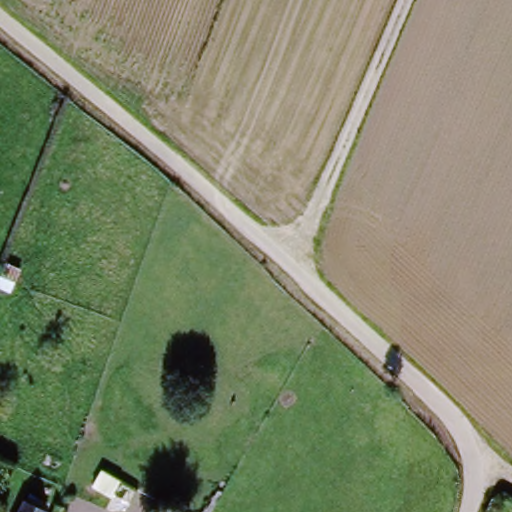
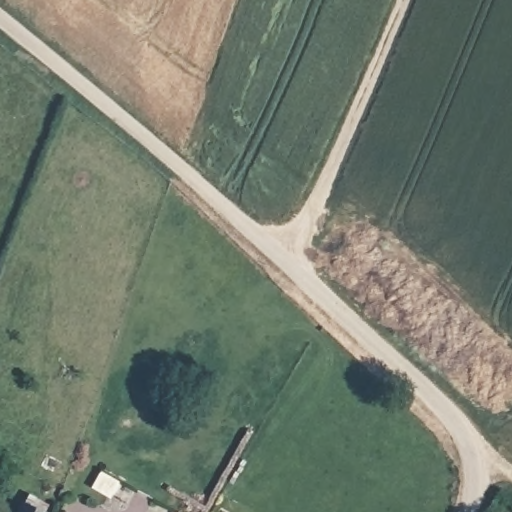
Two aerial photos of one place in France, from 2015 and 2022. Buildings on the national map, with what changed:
unchanged [(48,507),(46,512),(19,512),(26,497),(48,507)]

